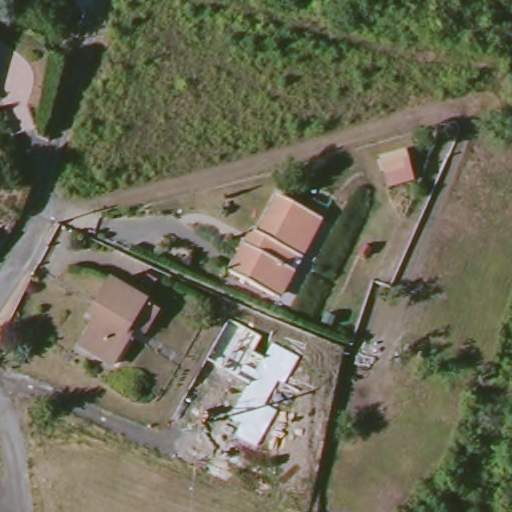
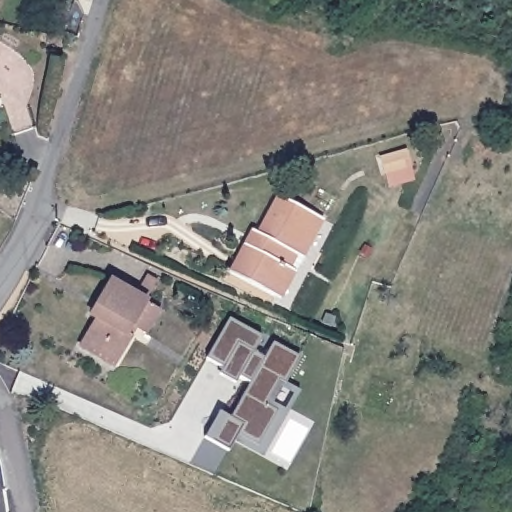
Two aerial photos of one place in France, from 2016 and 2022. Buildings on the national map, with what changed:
unchanged [(406,153),(410,167),(386,174),(382,160),(406,153)]
unchanged [(279,243),(272,258),(281,261),(267,290),(226,272),(239,244),(243,245),(267,191),(308,210),(291,247),(279,243)]
unchanged [(83,347),(98,320),(90,316),(110,282),(145,300),(126,336),(132,338),(117,365),(83,347)]
unchanged [(228,312),(261,329),(253,346),(262,351),(270,334),(298,347),(284,376),(277,372),(265,396),(275,401),(256,439),(232,427),(240,414),(230,408),(245,375),(205,352),(228,312)]

